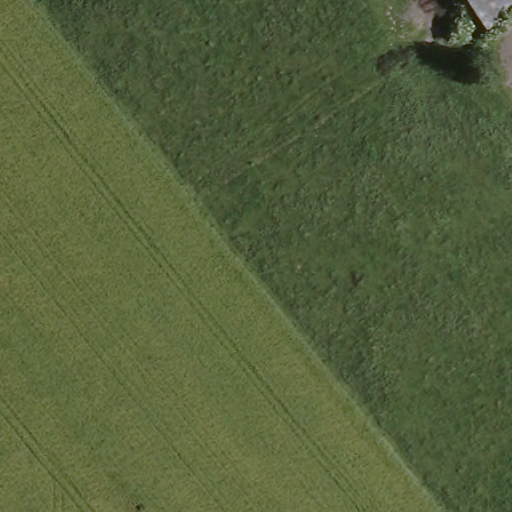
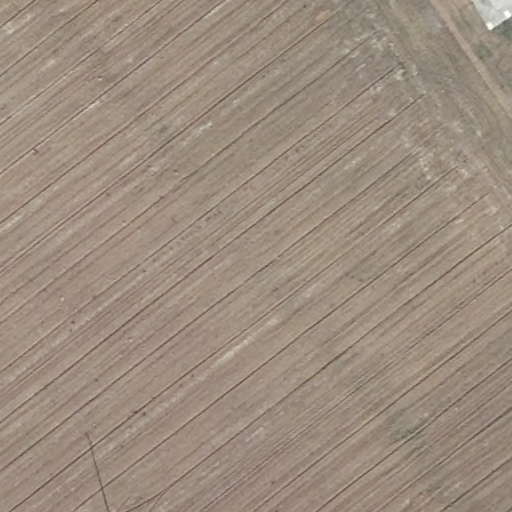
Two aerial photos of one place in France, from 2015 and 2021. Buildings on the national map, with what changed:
unchanged [(476,0),(512,0),(512,10),(493,23),(476,0)]

